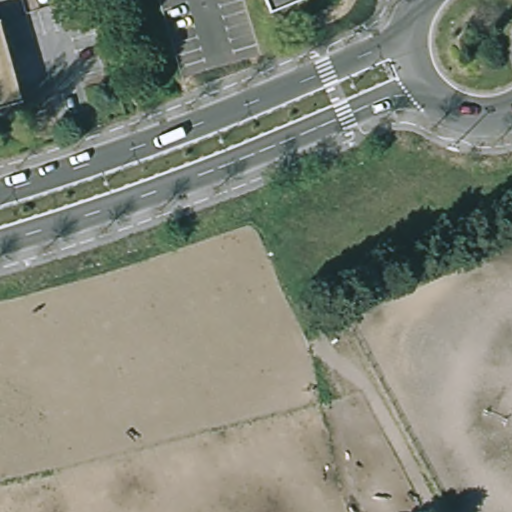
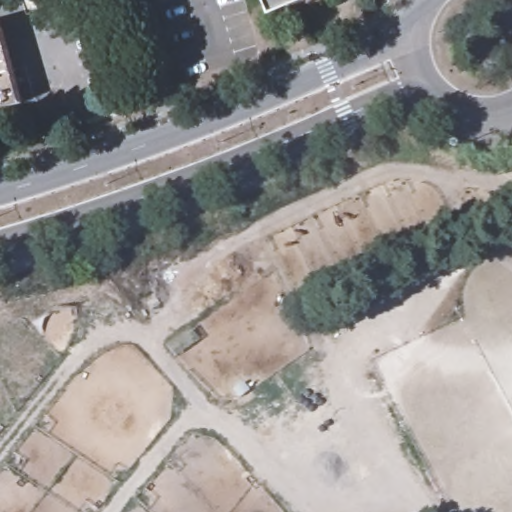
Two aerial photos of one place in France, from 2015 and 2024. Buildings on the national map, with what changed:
unchanged [(265,0),(302,0),(272,14),(265,0)]
unchanged [(0,110),(0,23),(22,104),(0,110)]
unchanged [(311,310),(322,306),(325,315),(315,319),(311,310)]

